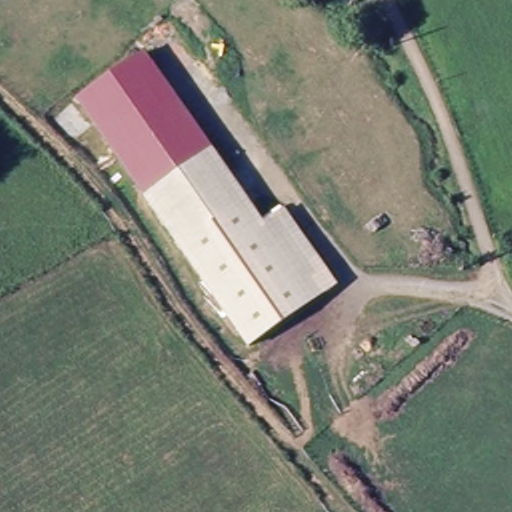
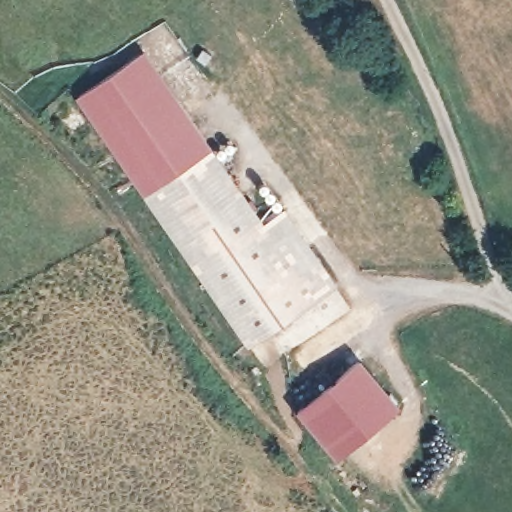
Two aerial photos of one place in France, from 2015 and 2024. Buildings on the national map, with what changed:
unchanged [(198,165),(147,201),(77,97),(141,50),(212,155),(198,165)]
unchanged [(211,290),(147,201),(198,165),(212,155),(220,166),(263,227),(282,214),(305,246),(334,287),(252,346),(211,290)]
new [(401,406),(337,460),(296,411),(361,358),(401,406)]

